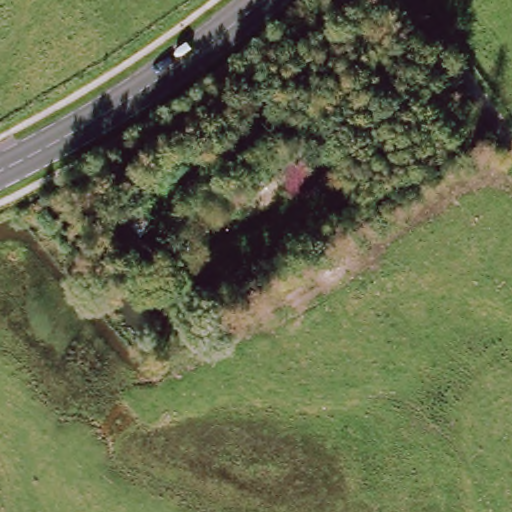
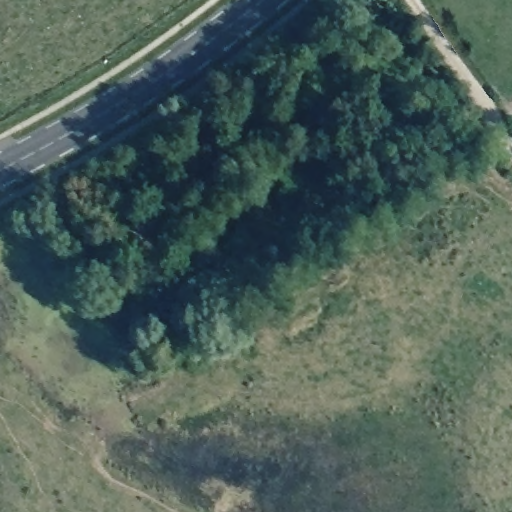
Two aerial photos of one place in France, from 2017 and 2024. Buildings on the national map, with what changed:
unchanged [(334,130),(353,153),(335,166),(323,152),(317,150),(255,201),(247,207),(238,197),(245,189),(305,138),(310,143),(318,142),(334,130)]

